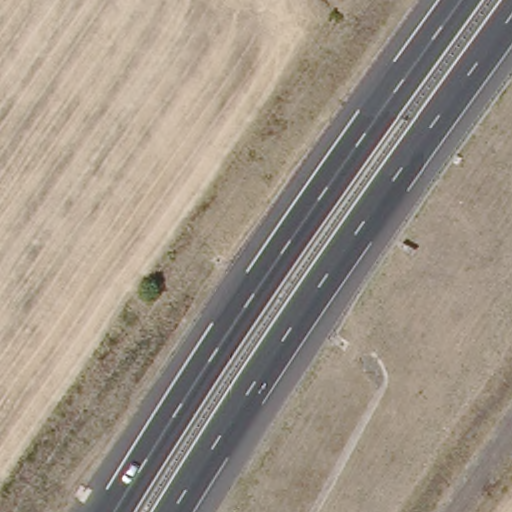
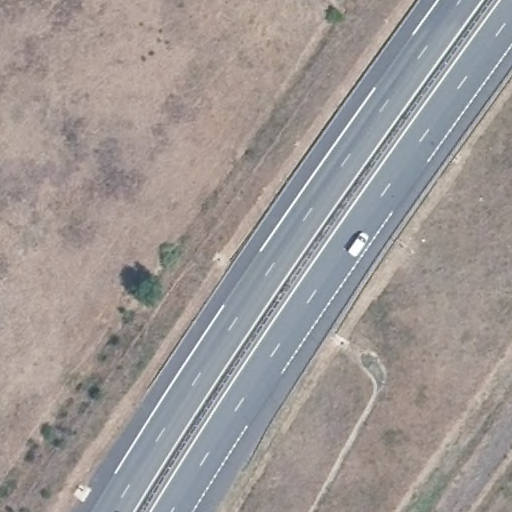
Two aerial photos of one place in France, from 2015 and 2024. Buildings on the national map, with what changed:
[]

